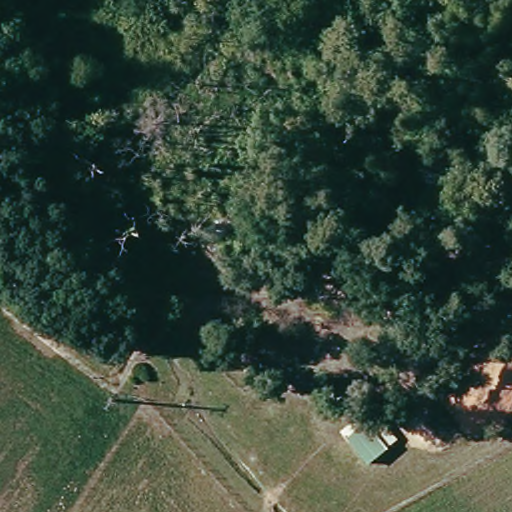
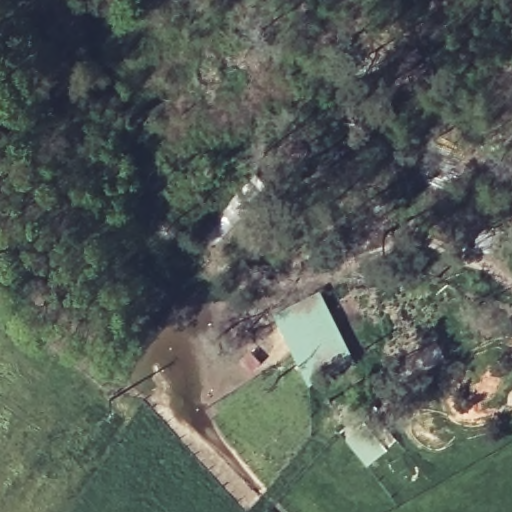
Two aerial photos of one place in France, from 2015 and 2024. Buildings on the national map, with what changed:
new [(319,288),(355,361),(309,386),(270,313),(319,288)]
new [(366,420),(389,447),(364,465),(343,438),(366,420)]

